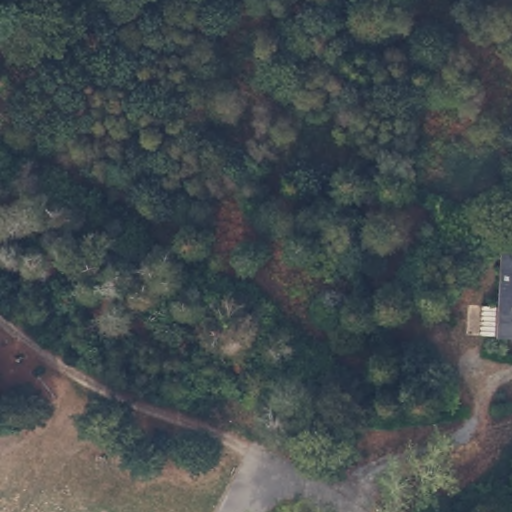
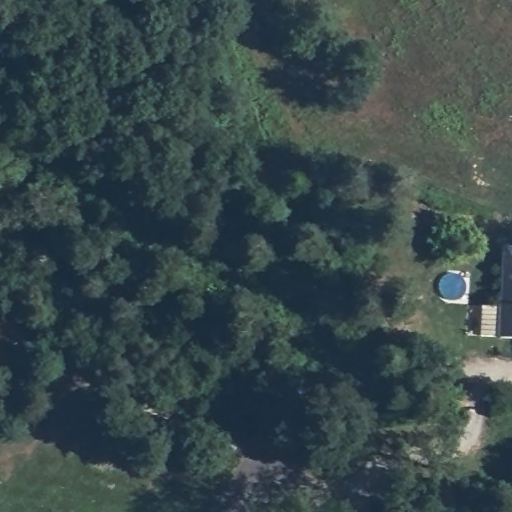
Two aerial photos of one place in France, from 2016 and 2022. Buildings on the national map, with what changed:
unchanged [(482,334),(485,302),(507,304),(512,263),(512,337),(482,334)]

